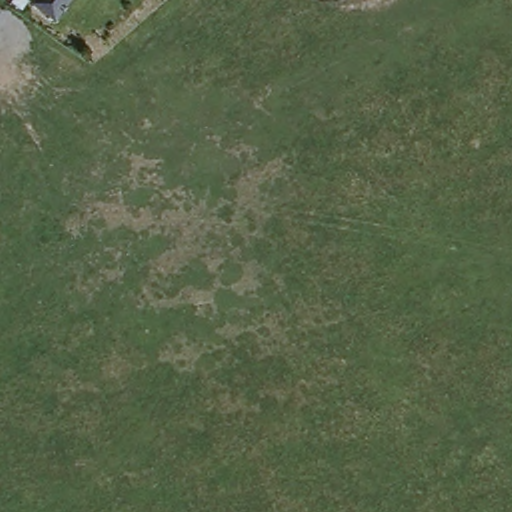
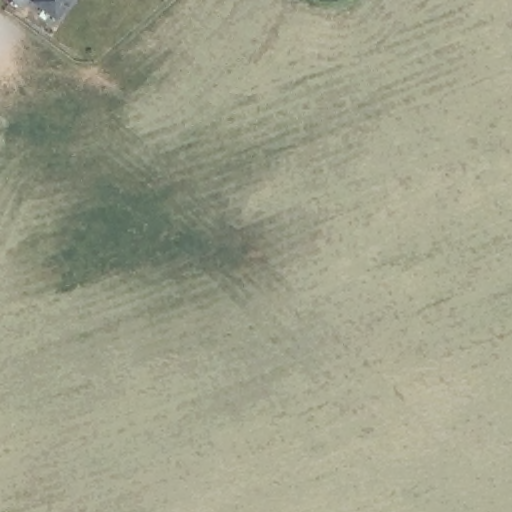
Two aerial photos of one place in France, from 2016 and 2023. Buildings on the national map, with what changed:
unchanged [(54,18),(29,0),(69,0),(54,18)]

